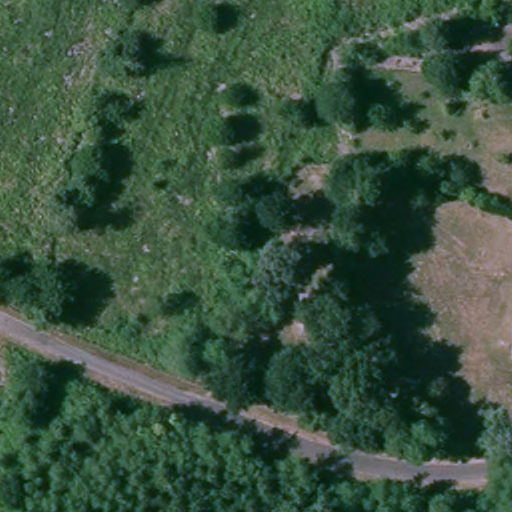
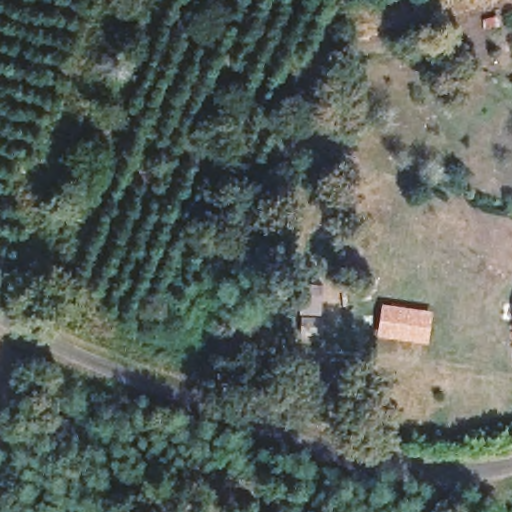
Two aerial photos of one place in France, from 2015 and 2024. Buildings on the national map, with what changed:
new [(432,312),(427,344),(376,337),(381,304),(432,312)]

